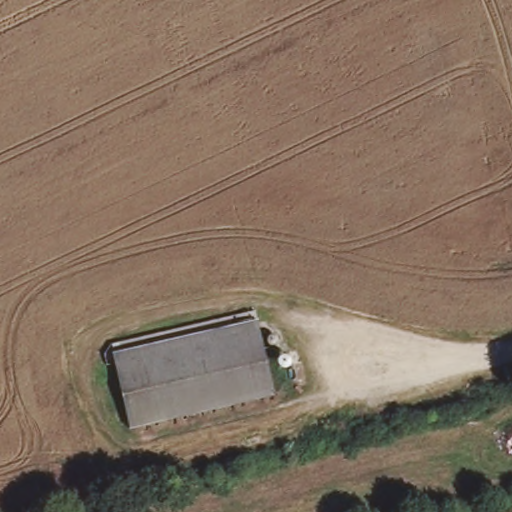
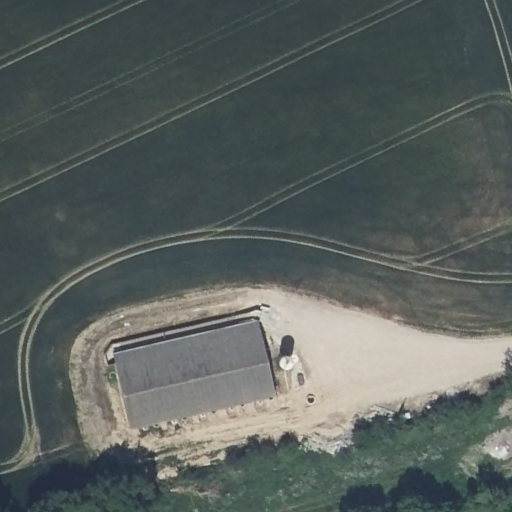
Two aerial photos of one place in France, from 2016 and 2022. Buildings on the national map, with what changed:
unchanged [(260,320),(280,391),(135,432),(115,360),(260,320)]

